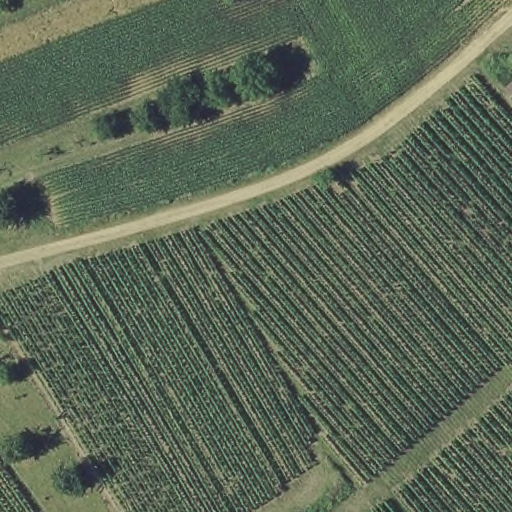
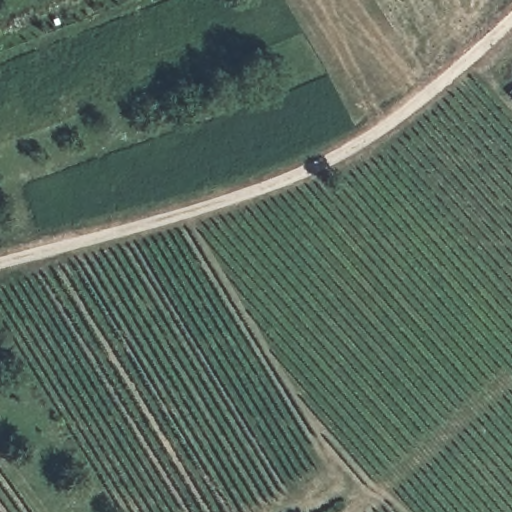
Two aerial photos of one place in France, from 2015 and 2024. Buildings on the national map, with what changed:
unchanged [(512,88),(512,97),(507,92),(512,88)]

